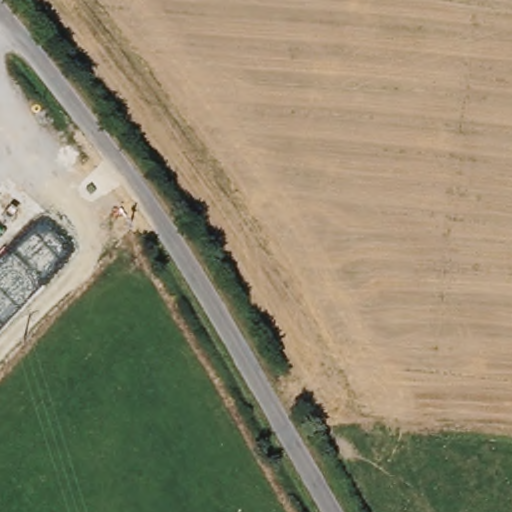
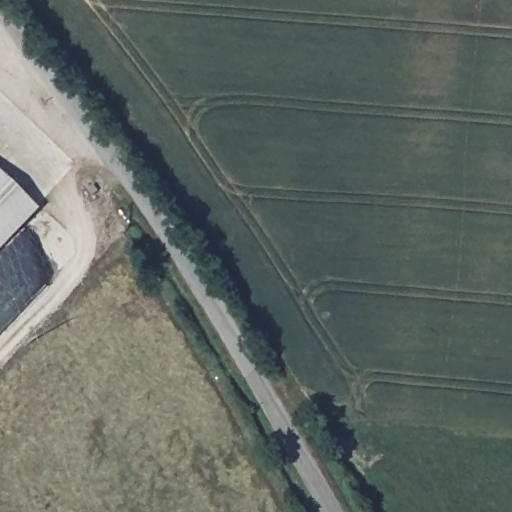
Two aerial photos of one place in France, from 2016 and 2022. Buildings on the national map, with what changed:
new [(0,244),(0,175),(35,208),(0,244)]

